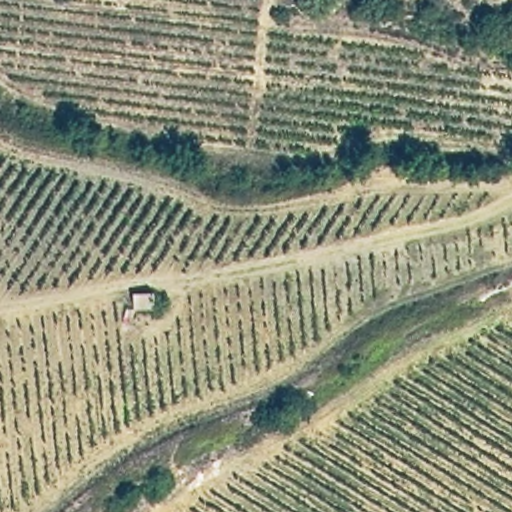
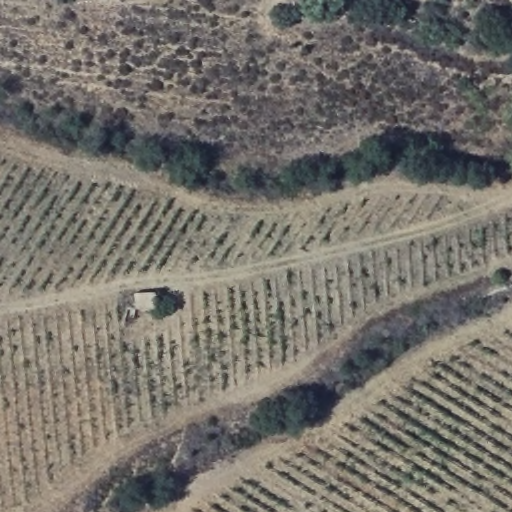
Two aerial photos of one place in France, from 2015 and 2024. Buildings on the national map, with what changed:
unchanged [(151,295),(151,311),(136,311),(136,295),(151,295)]

